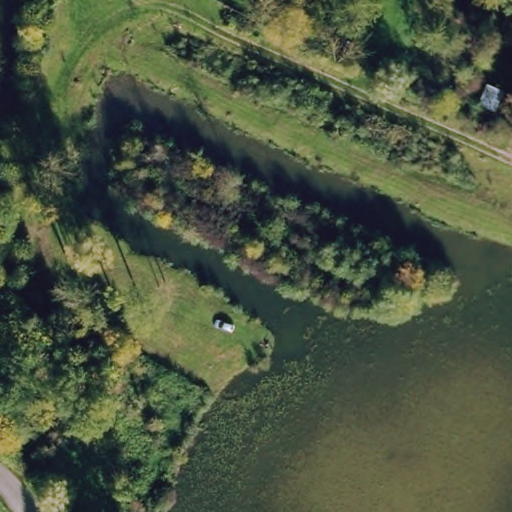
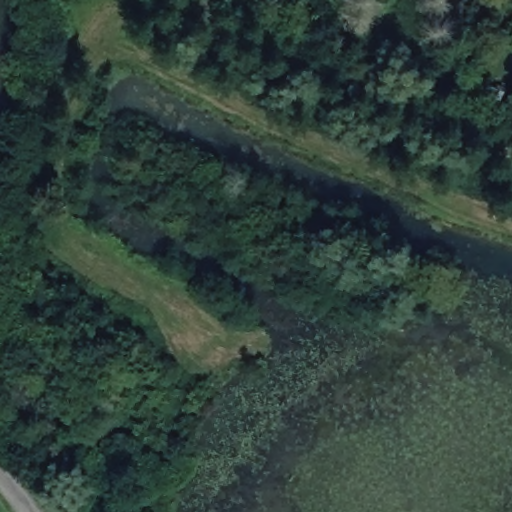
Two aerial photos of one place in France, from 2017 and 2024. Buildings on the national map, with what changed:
unchanged [(111,434),(97,458),(65,440),(80,413),(111,434)]

